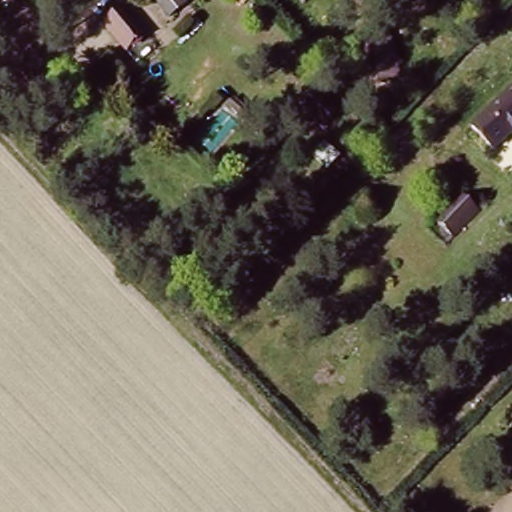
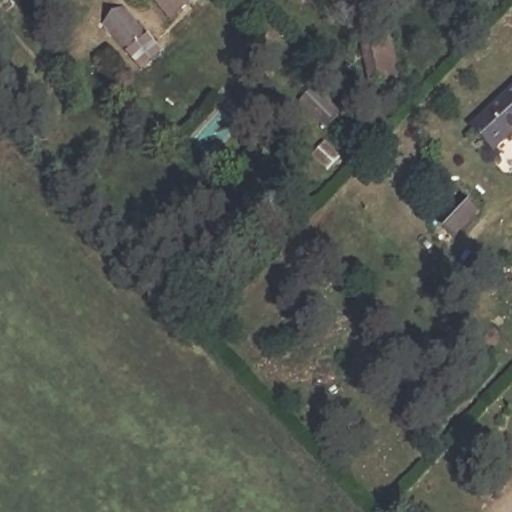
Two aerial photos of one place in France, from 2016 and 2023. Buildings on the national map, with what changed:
unchanged [(155,0),(188,0),(180,7),(182,10),(167,23),(151,3),(155,0)]
unchanged [(124,12),(147,41),(127,57),(104,28),(124,12)]
unchanged [(392,42),(395,66),(368,71),(365,46),(392,42)]
unchanged [(288,94),(313,120),(299,134),(274,108),(288,94)]
unchanged [(512,139),(492,157),(471,134),(512,96),(512,139)]
unchanged [(232,104),(245,117),(240,122),(226,110),(232,104)]
unchanged [(436,210),(462,185),(480,202),(455,229),(436,210)]

